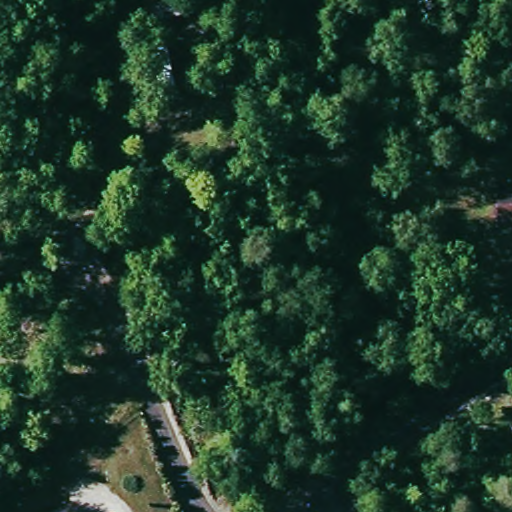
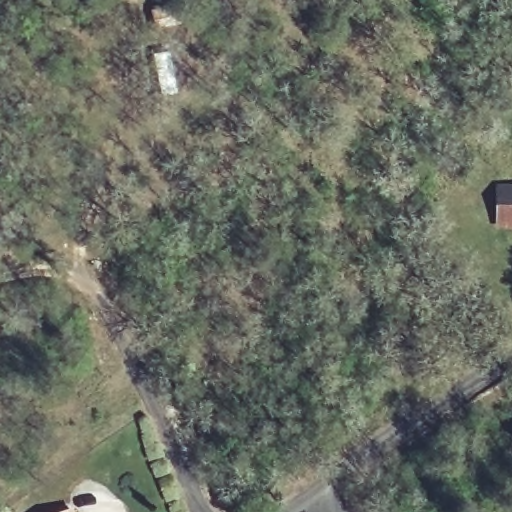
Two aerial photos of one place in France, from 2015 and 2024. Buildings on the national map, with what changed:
unchanged [(500,226),(500,187),(512,188),(512,227),(500,226)]
unchanged [(77,512),(61,512),(76,507),(77,512)]

